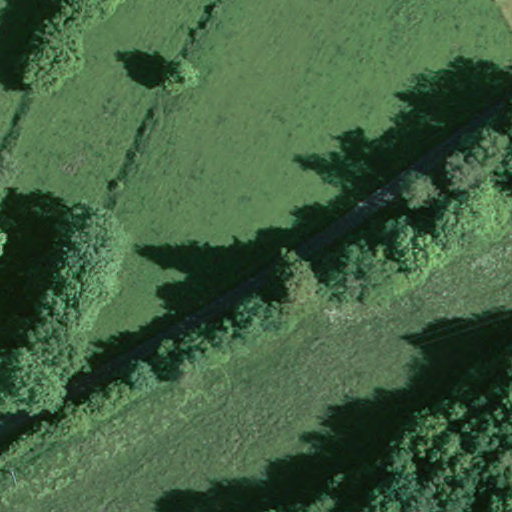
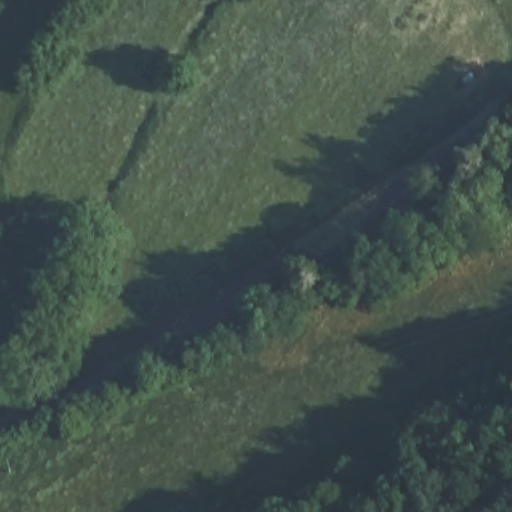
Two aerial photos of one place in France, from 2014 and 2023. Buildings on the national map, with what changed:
[]

